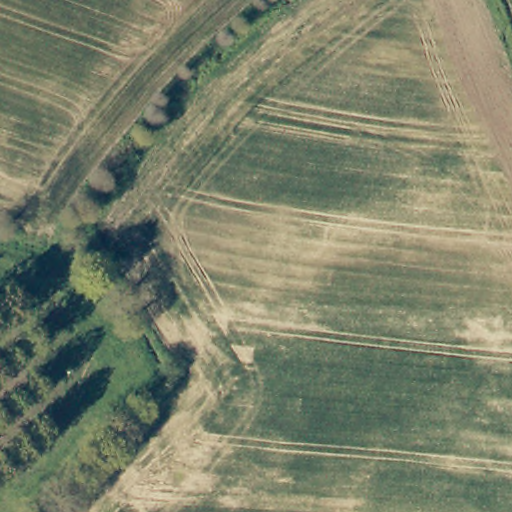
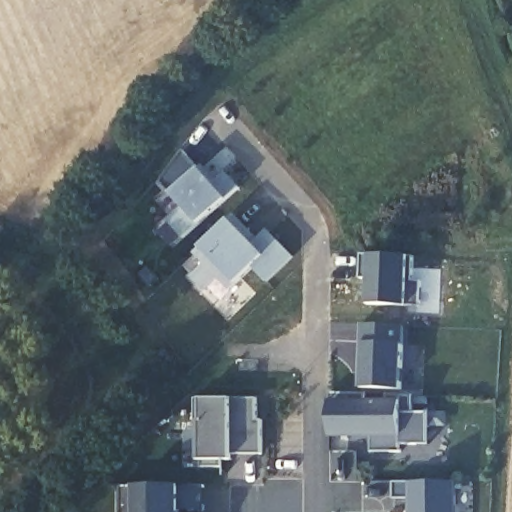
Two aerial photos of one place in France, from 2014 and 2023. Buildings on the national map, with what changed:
new [(228,199),(199,226),(183,240),(168,221),(184,209),(172,193),(161,183),(184,152),(202,168),(215,184),(226,171),(240,190),(228,199)]
new [(268,284),(253,270),(231,292),(219,281),(206,293),(192,278),(204,265),(193,252),(201,245),(230,218),(235,213),(258,238),(268,228),(295,256),(268,284)]
new [(406,306),(367,304),(368,280),(358,278),(360,254),(370,253),(408,256),(414,257),(412,281),(421,282),(420,307),(406,306)]
new [(403,344),(401,390),(361,388),(363,344),(362,324),(405,326),(403,344)]
new [(412,413),(429,412),(430,444),(401,445),(401,450),(371,451),(370,437),(328,438),(329,399),(388,399),(388,395),(411,397),(412,413)]
new [(258,422),(263,421),(263,453),(232,454),(232,460),(197,460),(197,421),(201,421),(201,400),(233,400),(259,399),(258,422)]
new [(411,512),(411,499),(395,499),(395,483),(412,481),(457,481),(456,512),(411,512)]
new [(179,509),(179,512),(121,512),(121,487),(134,486),(180,486),(204,486),(205,510),(179,509)]

